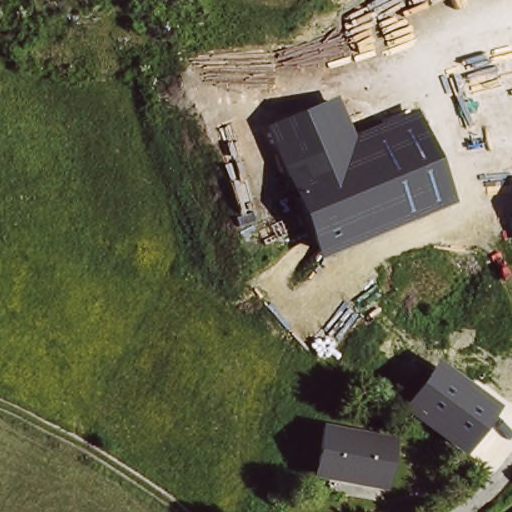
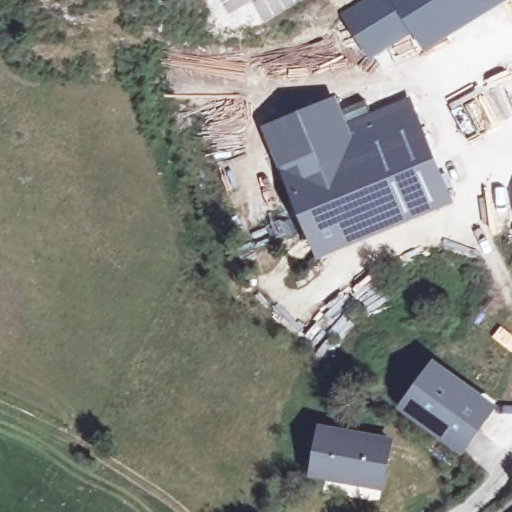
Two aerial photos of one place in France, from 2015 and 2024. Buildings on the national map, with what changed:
new [(359,0),(391,0),(411,35),(368,60),(338,13),(359,0)]
new [(422,52),(411,35),(391,0),(505,0),(422,52)]
unchanged [(259,127),(336,96),(351,133),(414,110),(451,205),(316,261),(259,127)]
unchanged [(398,409),(434,360),(497,406),(462,454),(398,409)]
unchanged [(373,486),(332,479),(334,467),(315,464),(321,429),(390,441),(387,460),(384,478),(382,488),(373,486)]

